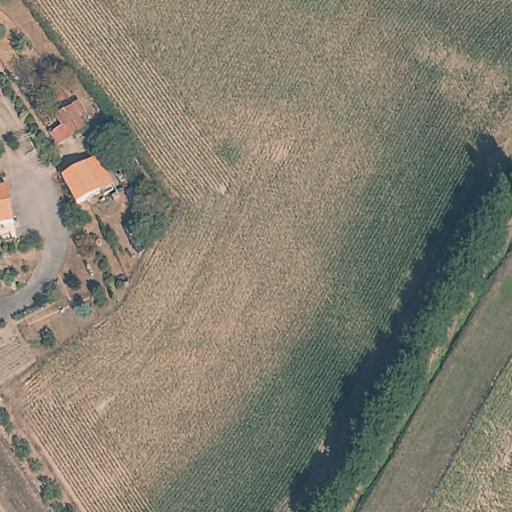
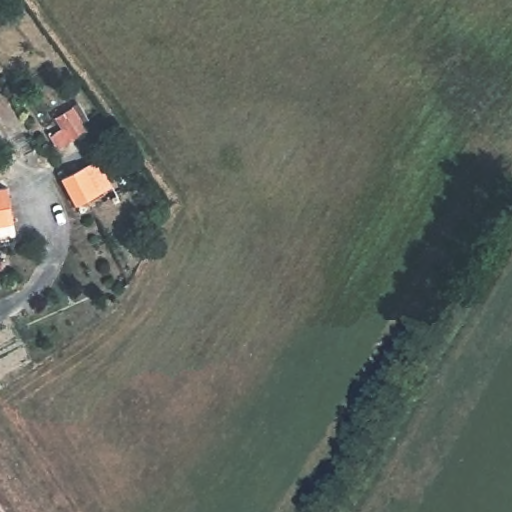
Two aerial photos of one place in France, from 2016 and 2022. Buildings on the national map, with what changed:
unchanged [(15,221),(0,223),(0,188),(9,187),(15,221)]
unchanged [(96,225),(70,230),(64,200),(91,196),(96,225)]

